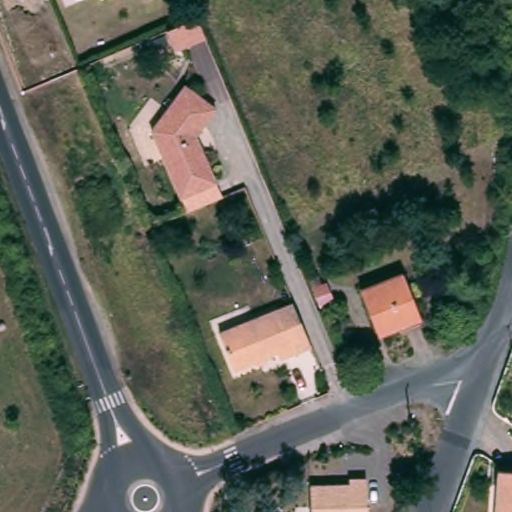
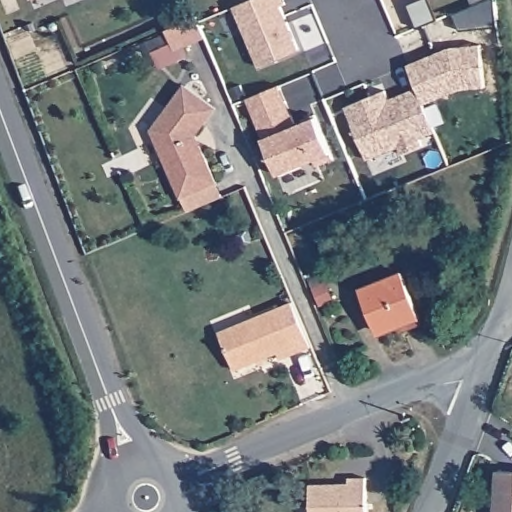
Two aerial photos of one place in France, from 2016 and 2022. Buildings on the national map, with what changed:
demolished [(68,0),(87,0),(71,7),(68,0)]
new [(284,0),(286,4),(281,6),(299,50),(259,67),(234,7),(250,0),(284,0)]
unchanged [(207,37),(176,51),(168,30),(198,17),(207,37)]
new [(481,44),(485,87),(460,89),(424,104),(417,87),(410,69),(408,65),(427,57),(450,47),(481,44)]
unchanged [(221,182),(186,197),(156,130),(190,85),(221,108),(200,135),(205,146),(221,182)]
new [(280,85),(296,125),(301,123),(300,121),(316,114),(334,158),(317,166),(315,160),(279,175),(248,98),(280,85)]
new [(385,90),(389,99),(417,87),(424,104),(435,132),(420,137),(423,145),(402,154),(399,147),(368,160),(346,107),(385,90)]
unchanged [(381,331),(364,288),(406,272),(425,318),(404,327),(383,336),(381,331)]
unchanged [(316,347),(301,352),(285,360),(282,352),(239,371),(223,332),(283,308),(296,302),(316,347)]
unchanged [(503,470),(512,471),(512,512),(500,512),(503,470)]
unchanged [(309,486),(348,484),(348,479),(365,478),(366,512),(310,512),(309,486)]

